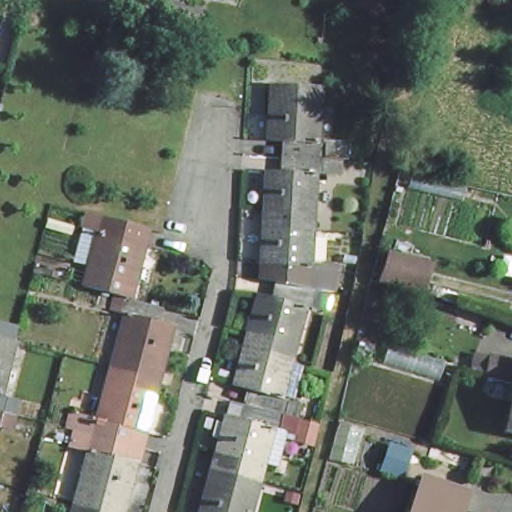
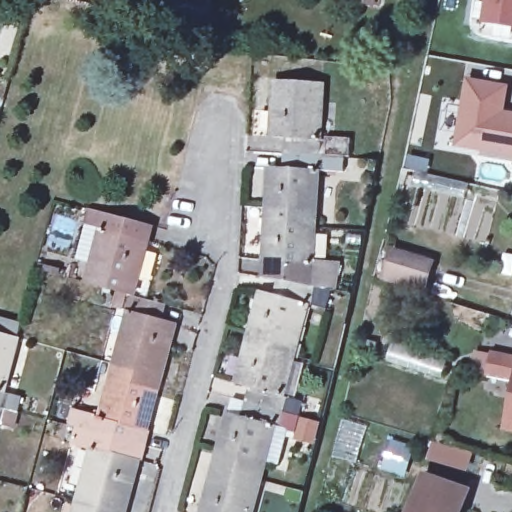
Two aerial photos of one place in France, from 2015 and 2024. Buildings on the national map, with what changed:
unchanged [(355,1),(355,0),(383,0),(380,9),(355,1)]
new [(512,0),(512,29),(480,24),(484,0),(512,0)]
unchanged [(230,411),(247,415),(256,384),(237,380),(261,288),(279,292),(281,260),(266,259),(272,166),(289,166),(290,134),(275,132),(278,77),(326,79),(323,135),(330,135),(327,168),(321,169),(315,262),(321,263),(316,299),(308,298),(283,390),(290,392),(282,422),(276,421),(253,512),(205,512),(230,411)]
new [(501,112),(512,114),(512,157),(454,147),(466,79),(505,86),(501,112)]
unchanged [(80,286),(91,239),(78,236),(82,217),(100,221),(126,228),(122,246),(137,250),(125,298),(80,286)]
unchanged [(391,244),(430,256),(420,283),(383,271),(391,244)]
unchanged [(321,263),(356,270),(350,305),(316,299),(321,263)]
unchanged [(160,307),(157,323),(172,327),(156,393),(147,431),(131,428),(128,442),(125,457),(140,462),(127,512),(78,512),(94,448),(88,447),(91,433),(95,418),(101,420),(110,385),(127,315),(121,313),(125,298),(160,307)]
unchanged [(20,328),(3,398),(10,400),(6,415),(16,417),(12,432),(0,430),(0,324),(20,328)]
unchanged [(497,351),(512,354),(512,373),(494,370),(497,351)]
new [(473,456),(469,470),(427,456),(432,442),(473,456)]
unchanged [(463,488),(454,512),(408,512),(410,505),(421,475),(463,488)]

